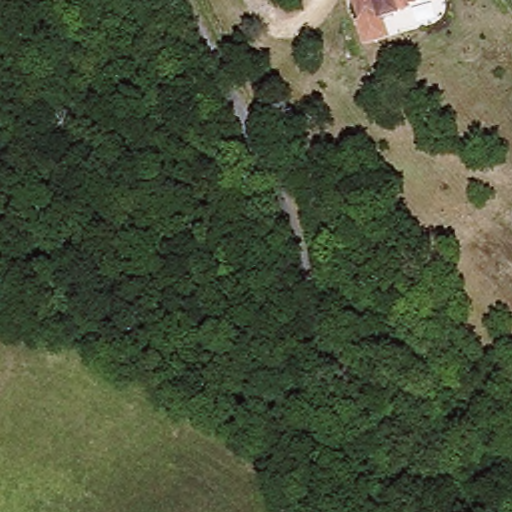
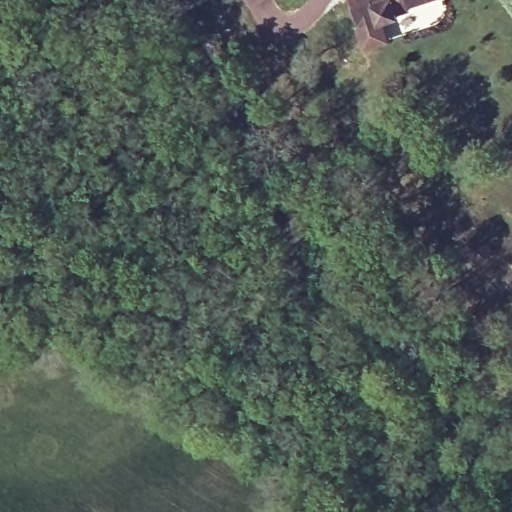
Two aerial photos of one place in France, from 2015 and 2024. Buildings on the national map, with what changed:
unchanged [(403,26),(386,36),(382,30),(361,38),(346,0),(439,0),(411,16),(403,26)]

